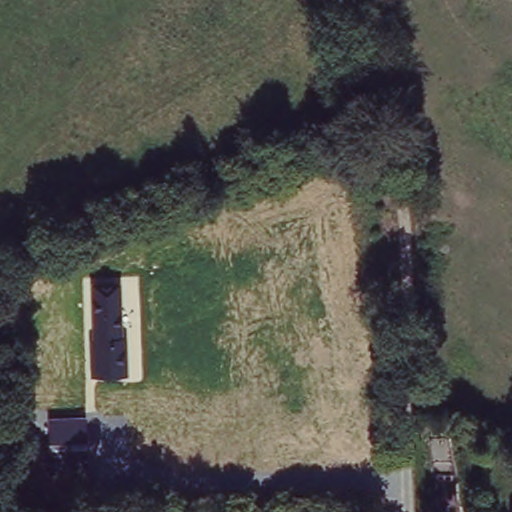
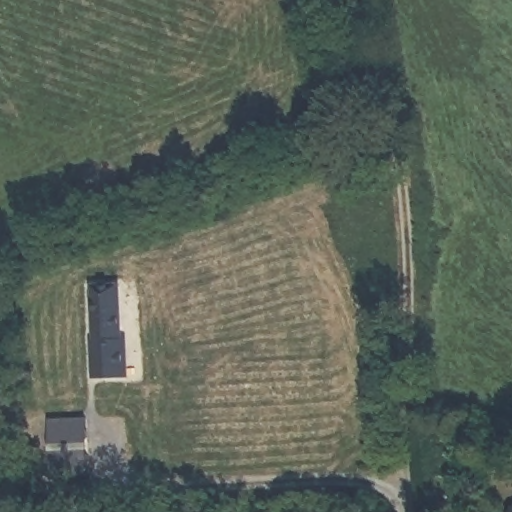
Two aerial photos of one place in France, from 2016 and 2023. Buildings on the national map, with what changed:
unchanged [(92,379),(91,338),(95,339),(92,284),(119,282),(122,327),(126,327),(128,374),(92,379)]
unchanged [(51,474),(45,419),(88,416),(93,469),(51,474)]

